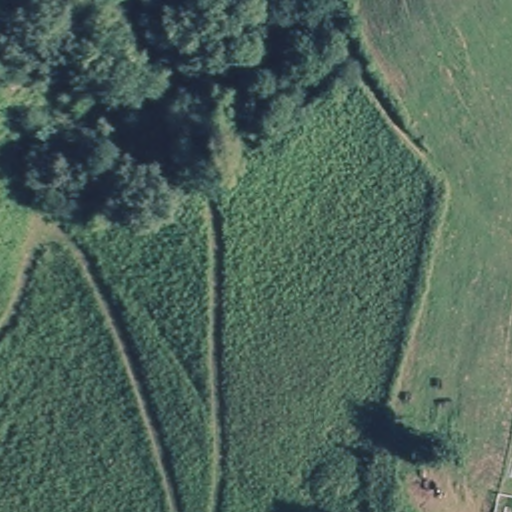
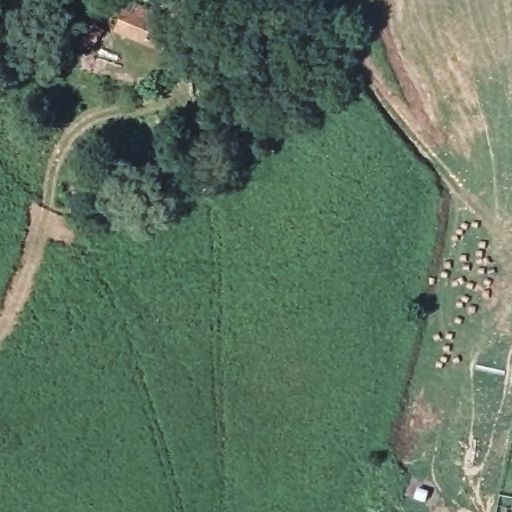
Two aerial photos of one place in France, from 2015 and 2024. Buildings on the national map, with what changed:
unchanged [(169,51),(124,31),(133,14),(176,34),(169,51)]

